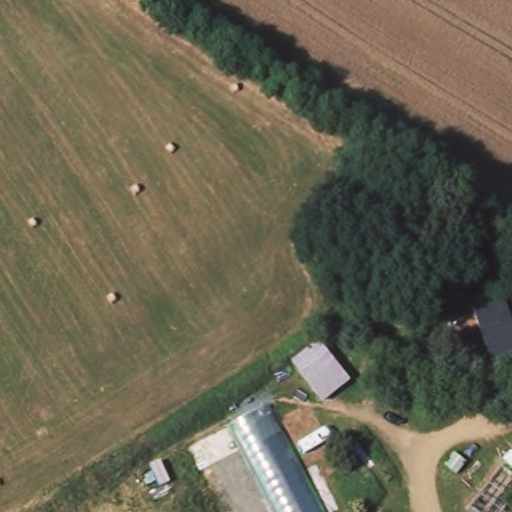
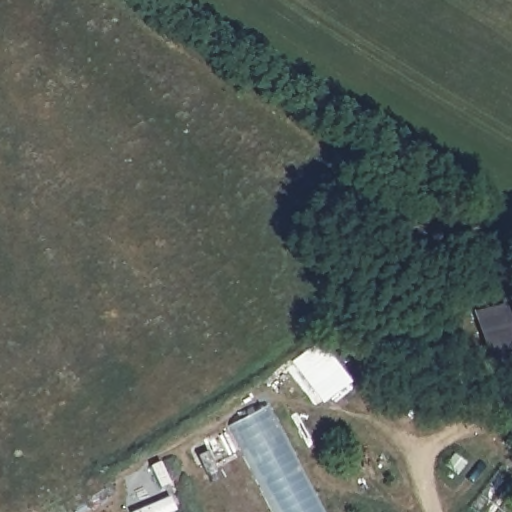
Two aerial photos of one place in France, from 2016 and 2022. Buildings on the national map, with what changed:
unchanged [(503,301),(512,329),(512,360),(492,367),(472,311),(503,301)]
unchanged [(291,361),(319,340),(350,382),(324,402),(291,361)]
unchanged [(231,426),(268,407),(322,512),(276,512),(231,426)]
unchanged [(504,466),(512,472),(512,500),(503,512),(475,512),(472,510),(504,466)]

